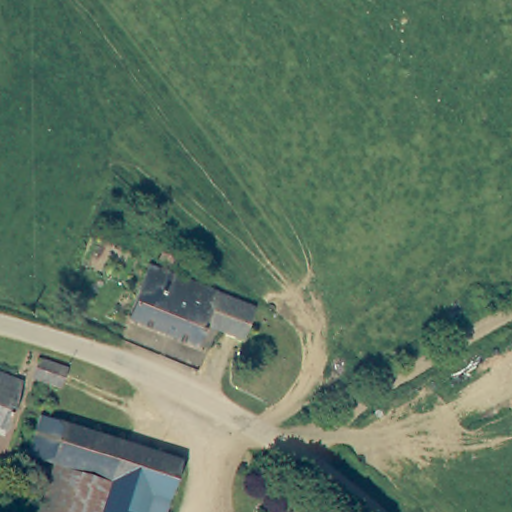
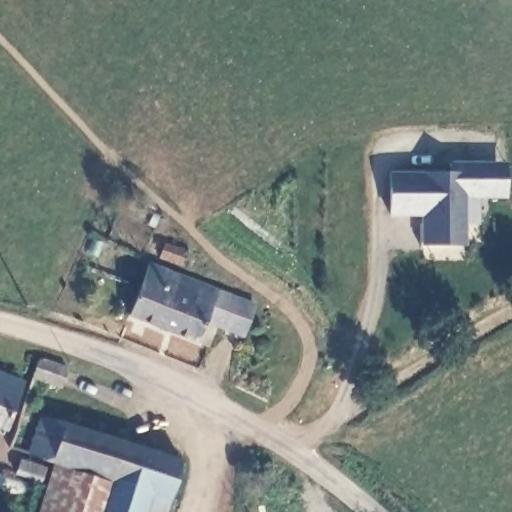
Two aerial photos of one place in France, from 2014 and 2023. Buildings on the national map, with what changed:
new [(448,171),(449,160),(508,161),(506,197),(478,197),(478,225),(465,225),(465,247),(421,246),(421,215),(390,215),(389,171),(448,171)]
unchanged [(199,284),(256,303),(243,337),(213,325),(204,348),(126,323),(145,268),(199,284)]
demolished [(88,354),(82,371),(48,359),(52,341),(88,354)]
unchanged [(23,390),(5,434),(0,432),(0,380),(23,390)]
unchanged [(167,501),(158,499),(154,512),(145,512),(140,511),(140,512),(98,512),(107,484),(55,465),(45,461),(38,459),(24,454),(34,418),(178,465),(167,501)]
unchanged [(40,465),(36,481),(11,475),(16,459),(40,465)]
unchanged [(98,512),(36,512),(55,465),(107,484),(98,512)]

